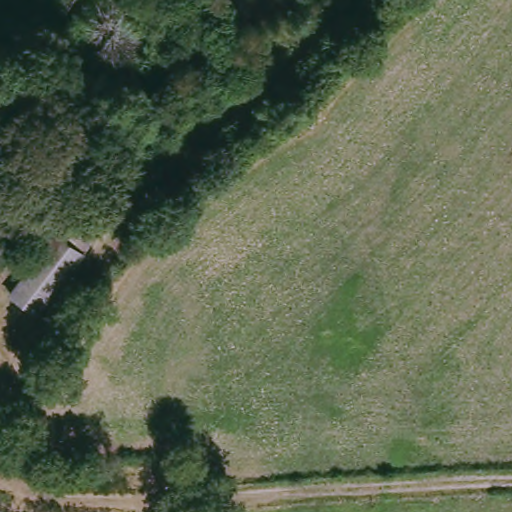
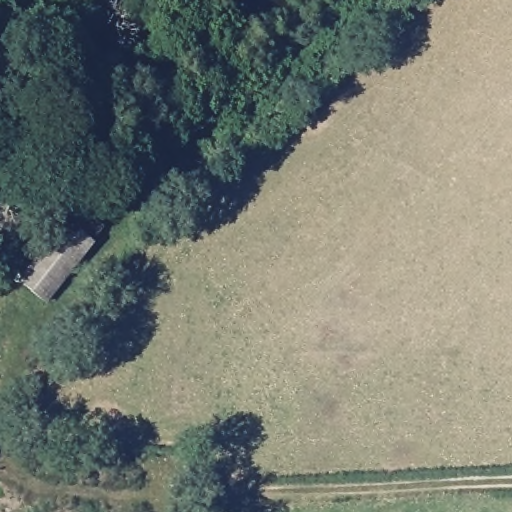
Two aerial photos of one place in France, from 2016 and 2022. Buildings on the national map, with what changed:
unchanged [(13,288),(61,224),(73,206),(100,226),(89,247),(46,308),(13,288)]

